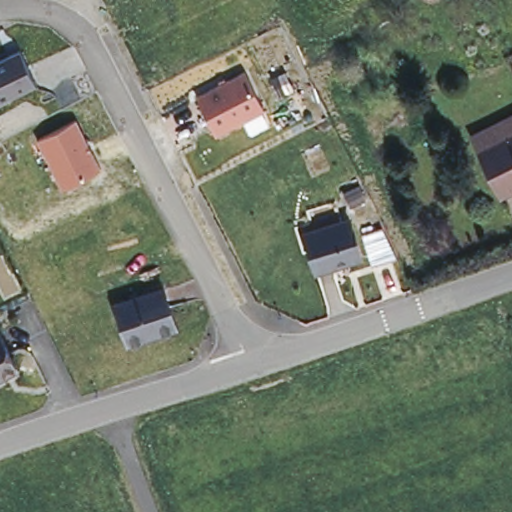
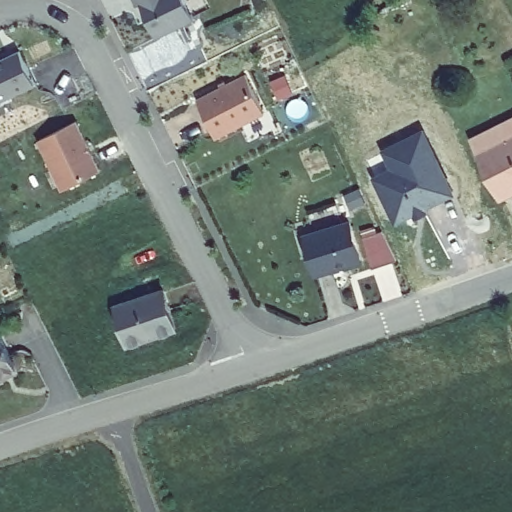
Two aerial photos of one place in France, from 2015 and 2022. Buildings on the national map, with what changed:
new [(156,37),(140,4),(136,6),(133,0),(186,0),(195,19),(156,37)]
unchanged [(19,51),(35,84),(0,101),(0,60),(19,51)]
unchanged [(195,101),(243,75),(264,113),(215,138),(195,101)]
unchanged [(483,144),(477,134),(512,116),(512,188),(506,191),(483,144)]
unchanged [(39,143),(79,122),(103,170),(63,190),(39,143)]
new [(424,131),(453,198),(395,228),(371,178),(388,170),(381,151),(424,131)]
unchanged [(315,275),(304,237),(350,223),(361,261),(315,275)]
unchanged [(128,345),(115,307),(164,292),(176,330),(128,345)]
unchanged [(0,377),(0,336),(16,368),(0,377)]

